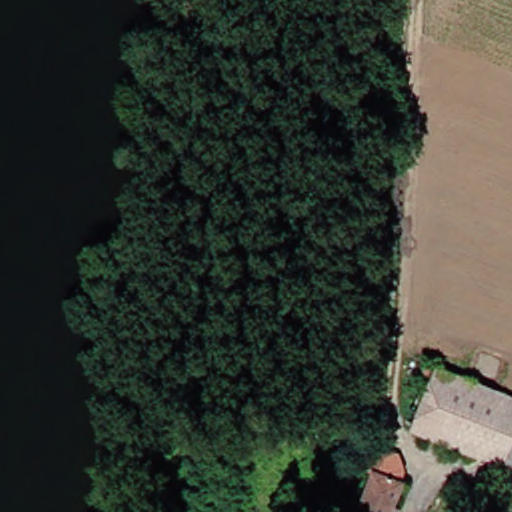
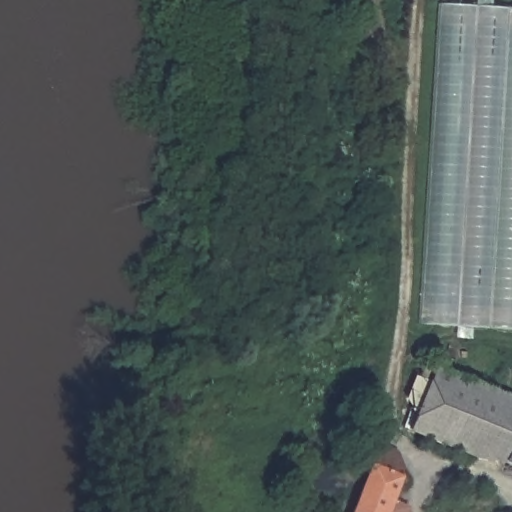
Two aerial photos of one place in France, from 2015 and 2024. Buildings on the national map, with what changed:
new [(413,323),(430,3),(512,8),(512,330),(413,323)]
new [(502,459),(500,467),(407,431),(434,361),(440,363),(428,400),(453,407),(443,437),(502,459)]
unchanged [(443,437),(453,407),(428,400),(440,363),(512,389),(512,462),(443,437)]
unchanged [(397,512),(364,512),(380,462),(411,472),(397,512)]

